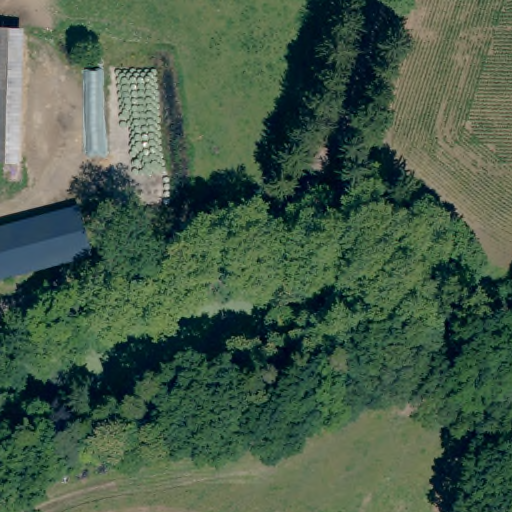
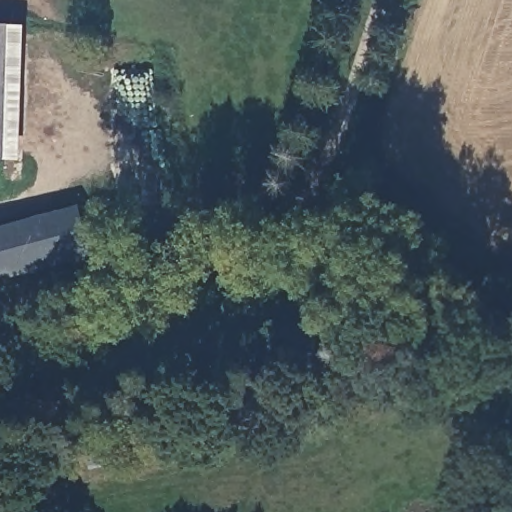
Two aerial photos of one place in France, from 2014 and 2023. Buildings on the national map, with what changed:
unchanged [(0,28),(15,29),(11,158),(0,158),(0,28)]
unchanged [(94,257),(0,286),(0,234),(80,210),(94,257)]

